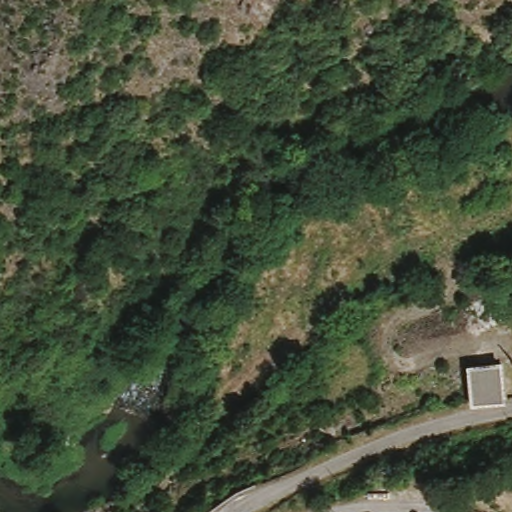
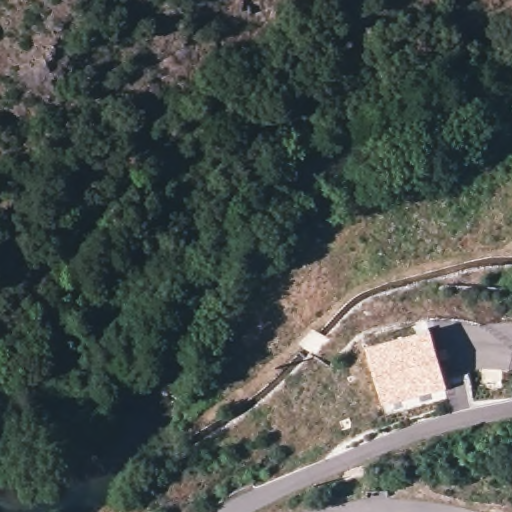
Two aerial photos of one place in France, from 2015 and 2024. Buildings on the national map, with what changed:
new [(431,332),(446,389),(383,407),(368,349),(431,332)]
unchanged [(469,367),(500,364),(508,404),(475,408),(469,367)]

